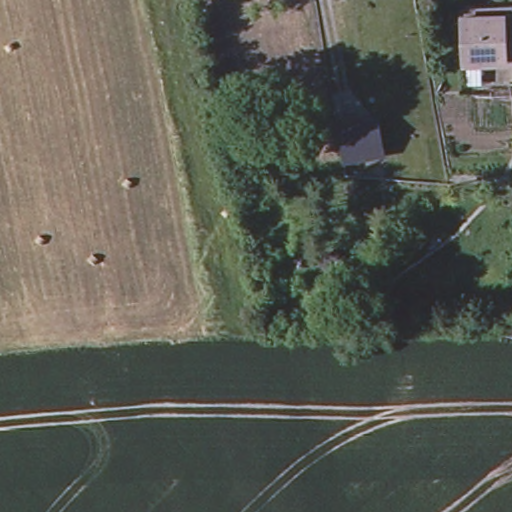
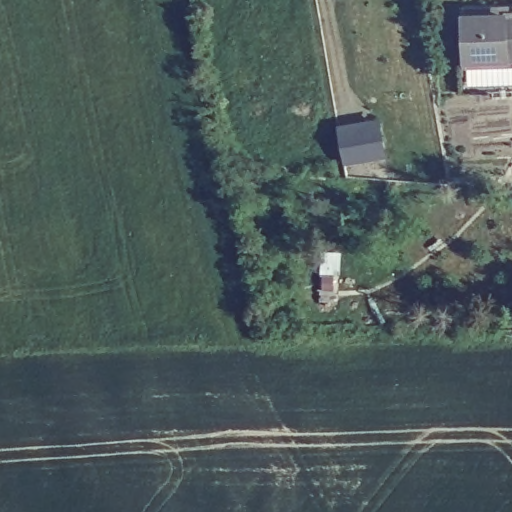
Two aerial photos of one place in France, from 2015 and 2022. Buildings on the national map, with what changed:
unchanged [(459,59),(458,15),(457,9),(511,7),(512,7),(512,64),(459,66),(459,59)]
unchanged [(384,157),(343,166),(335,125),(377,117),(384,157)]

